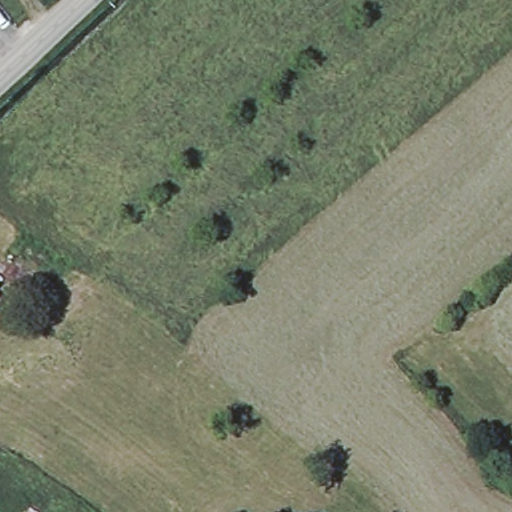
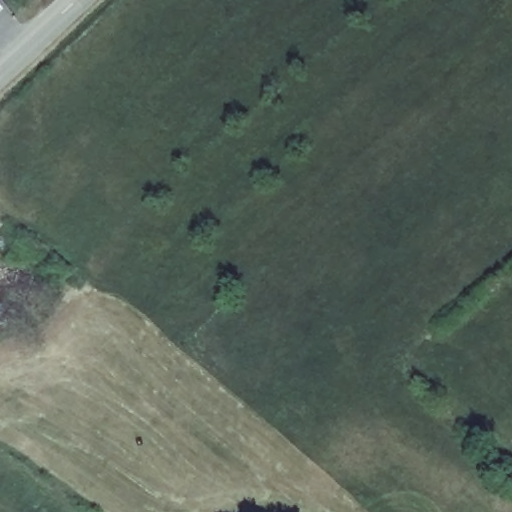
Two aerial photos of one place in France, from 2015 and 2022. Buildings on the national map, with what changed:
unchanged [(6,296),(0,303),(0,291),(6,296)]

